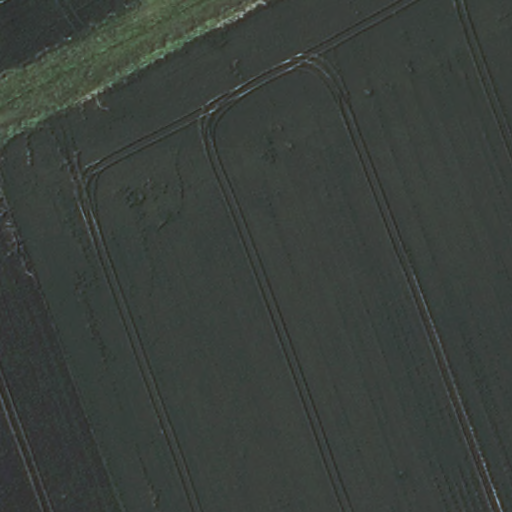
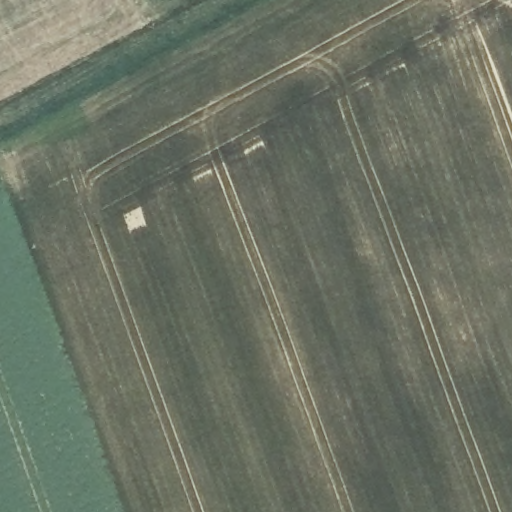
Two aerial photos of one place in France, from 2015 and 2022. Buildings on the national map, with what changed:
[]

